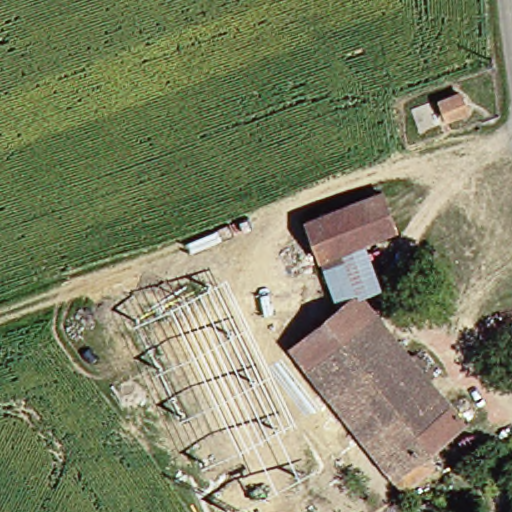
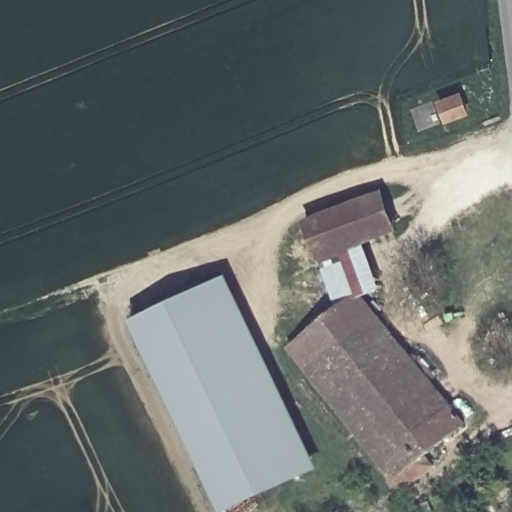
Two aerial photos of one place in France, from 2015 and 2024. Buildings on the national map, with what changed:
unchanged [(442,123),(432,101),(452,93),(462,114),(442,123)]
unchanged [(369,205),(380,232),(362,240),(318,261),(305,231),(369,205)]
unchanged [(318,261),(362,240),(382,289),(355,304),(347,294),(335,304),(318,261)]
new [(320,468),(228,512),(223,512),(131,322),(228,275),(320,468)]
unchanged [(393,486),(385,476),(290,371),(282,373),(270,357),(335,304),(347,294),(355,304),(455,417),(416,450),(425,462),(393,486)]

